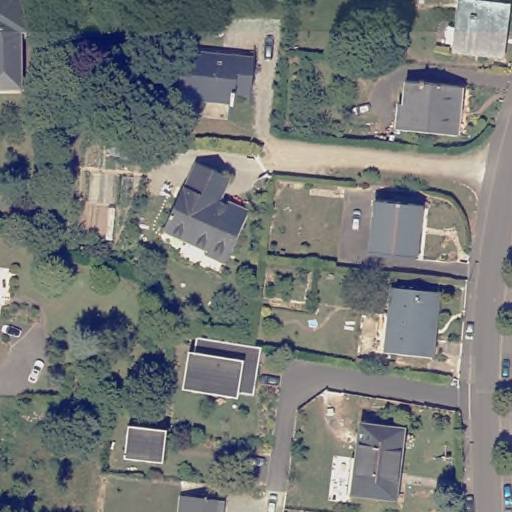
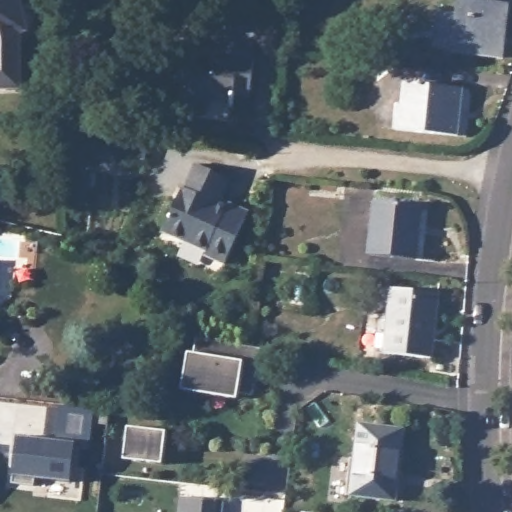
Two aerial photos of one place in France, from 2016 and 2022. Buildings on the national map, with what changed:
unchanged [(32,19),(24,21),(25,27),(26,32),(26,37),(26,43),(26,84),(0,84),(0,0),(28,0),(32,19)]
unchanged [(450,52),(457,0),(495,0),(510,2),(508,22),(504,22),(500,59),(450,52)]
unchanged [(186,110),(191,53),(262,61),(258,96),(244,95),(242,104),(207,101),(206,112),(186,110)]
unchanged [(400,131),(402,106),(406,107),(410,83),(465,90),(461,137),(400,131)]
unchanged [(204,255),(205,252),(162,231),(182,188),(185,189),(196,164),(230,179),(218,204),(225,209),(228,205),(249,214),(224,264),(204,255)]
unchanged [(369,256),(374,204),(420,209),(414,261),(369,256)]
unchanged [(383,355),(391,289),(438,294),(430,360),(383,355)]
unchanged [(188,352),(194,353),(196,337),(261,348),(254,396),(240,393),(239,401),(182,391),(188,352)]
new [(42,439),(50,440),(56,441),(60,406),(94,410),(90,445),(76,443),(71,483),(35,479),(35,487),(12,484),(17,437),(42,439)]
unchanged [(126,426),(168,430),(165,466),(122,460),(126,426)]
unchanged [(350,495),(360,426),(402,432),(393,501),(350,495)]
unchanged [(224,502),(223,512),(177,512),(179,498),(224,502)]

